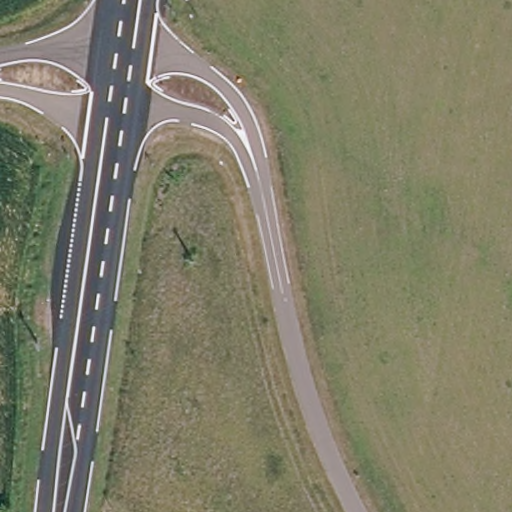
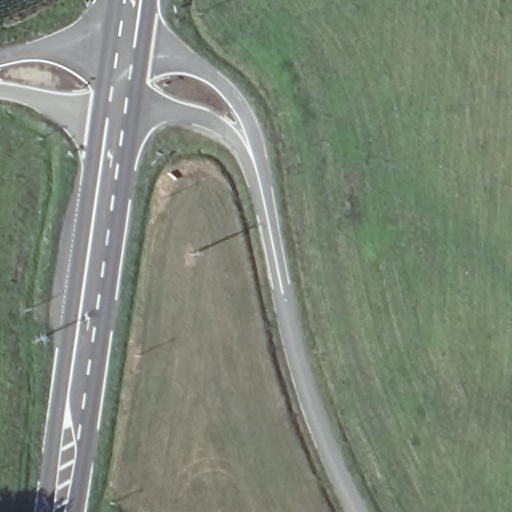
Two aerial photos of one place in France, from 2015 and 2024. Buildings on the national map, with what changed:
[]

